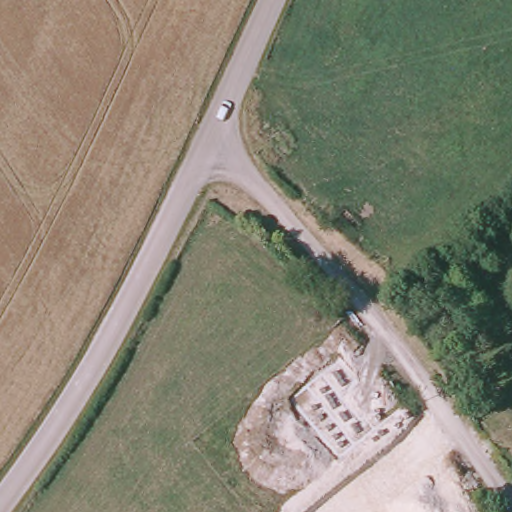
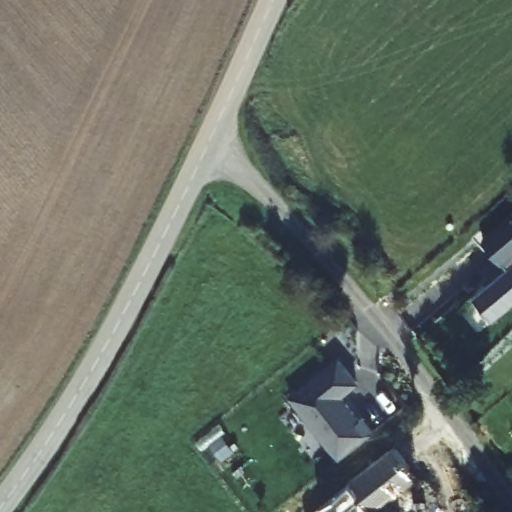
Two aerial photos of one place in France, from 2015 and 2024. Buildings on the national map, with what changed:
new [(512,305),(501,313),(481,290),(511,264),(507,258),(503,262),(483,238),(512,214),(512,305)]
new [(360,382),(341,397),(358,419),(365,415),(376,430),(337,459),(287,397),(338,357),(360,382)]
new [(376,512),(327,512),(320,505),(395,445),(417,476),(376,512)]

